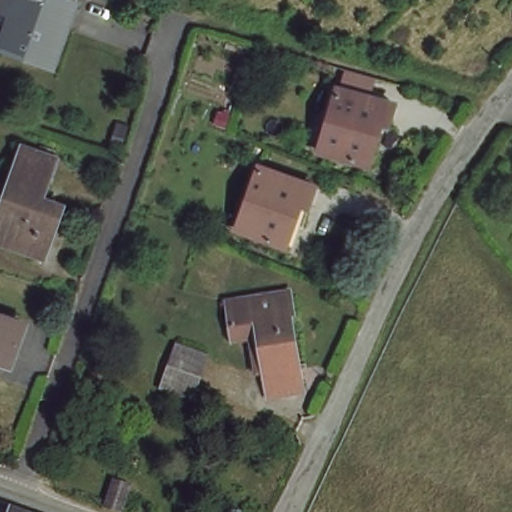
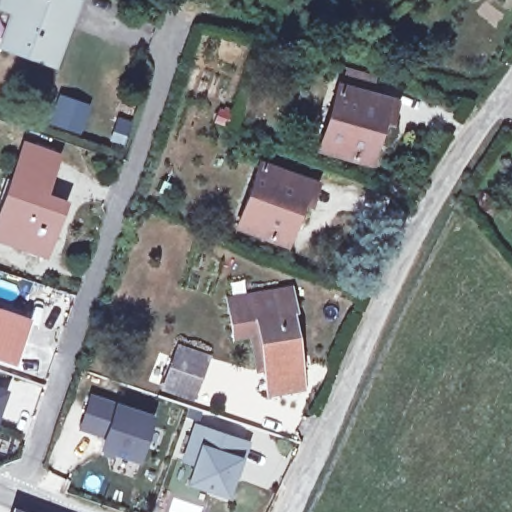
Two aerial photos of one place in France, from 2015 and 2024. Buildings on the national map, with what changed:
unchanged [(10,31),(19,35),(23,22),(0,15),(4,0),(48,0),(79,10),(75,28),(65,25),(51,69),(3,52),(10,31)]
unchanged [(344,62),(370,71),(366,90),(338,83),(344,62)]
unchanged [(397,102),(391,127),(385,125),(373,164),(320,148),(340,85),(397,102)]
unchanged [(42,197),(65,204),(47,255),(0,240),(0,228),(26,149),(60,160),(56,176),(50,176),(42,197)]
unchanged [(314,182),(302,214),(299,212),(287,246),(235,226),(258,162),(314,182)]
unchanged [(298,291),(301,311),(297,311),(303,365),(296,366),(299,388),(273,391),(267,332),(241,335),(240,316),(239,295),(298,291)]
unchanged [(15,332),(22,334),(14,360),(0,356),(0,309),(20,316),(15,332)]
unchanged [(196,399),(165,389),(178,347),(208,357),(196,399)]
new [(0,409),(0,391),(5,392),(0,409)]
new [(90,398),(150,417),(137,460),(101,448),(105,436),(80,428),(90,398)]
new [(196,425),(247,442),(241,460),(238,459),(226,494),(189,481),(196,462),(185,458),(196,425)]
demolished [(115,478),(136,486),(129,512),(112,512),(107,511),(115,478)]

